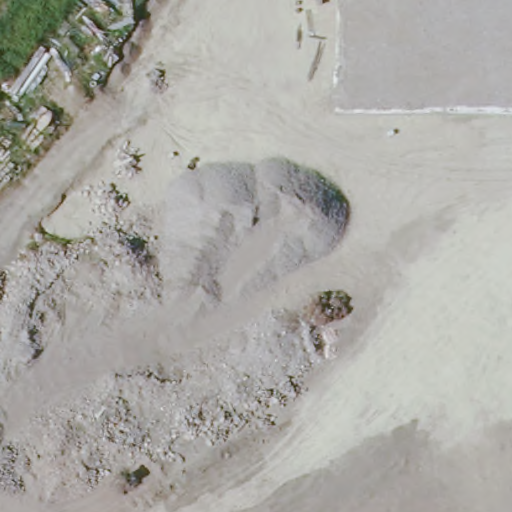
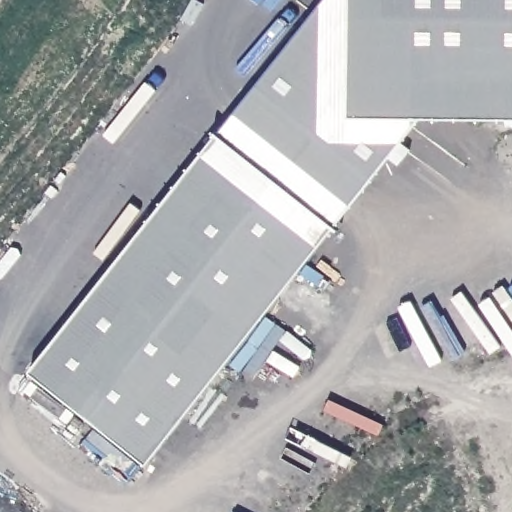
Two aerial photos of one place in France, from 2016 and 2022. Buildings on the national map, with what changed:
new [(512,0),(512,121),(421,120),(371,182),(254,90),(324,0),(512,0)]
new [(254,90),(371,182),(334,229),(217,136),(254,90)]
new [(217,136),(334,229),(148,465),(30,373),(217,136)]

